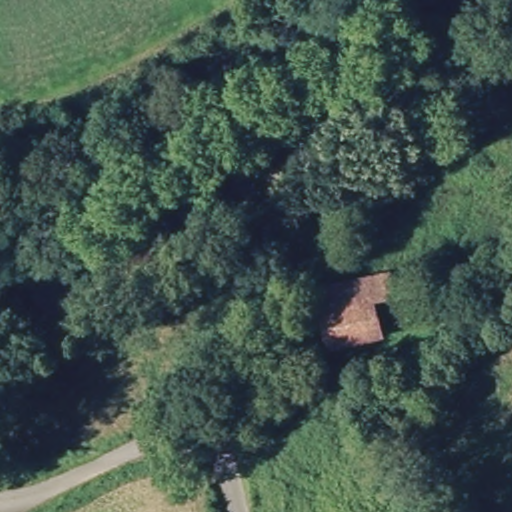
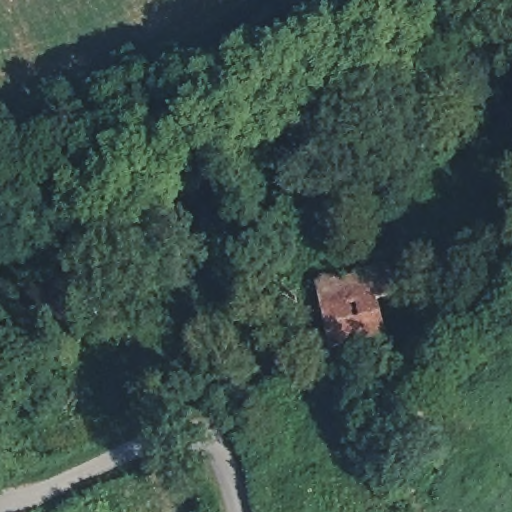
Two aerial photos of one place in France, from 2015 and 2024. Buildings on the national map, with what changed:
unchanged [(378,306),(384,340),(328,350),(320,291),(391,279),(394,297),(395,303),(378,306)]

